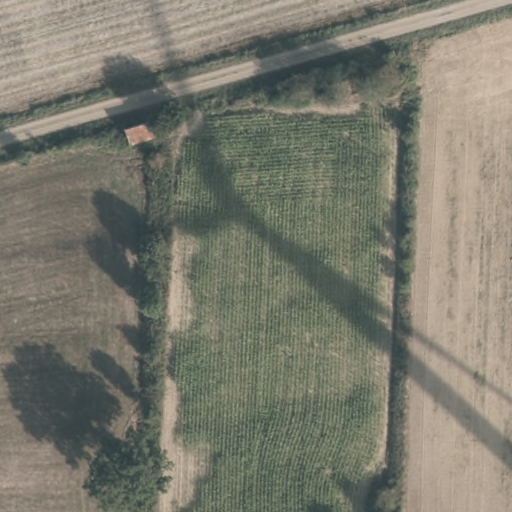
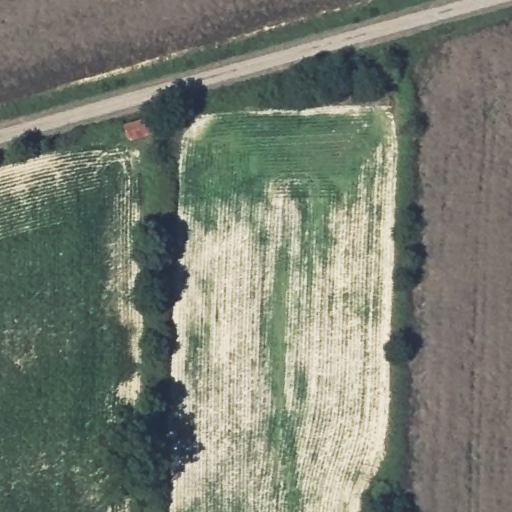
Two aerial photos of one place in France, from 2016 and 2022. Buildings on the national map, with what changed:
unchanged [(153,116),(158,135),(132,143),(124,123),(153,116)]

